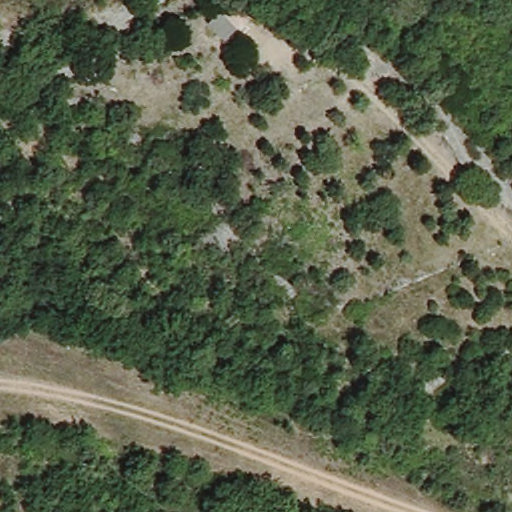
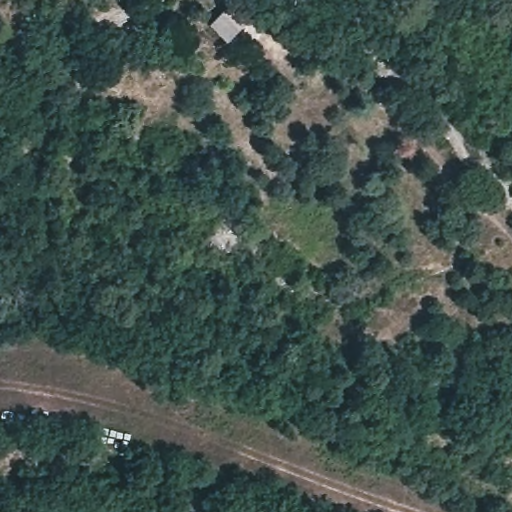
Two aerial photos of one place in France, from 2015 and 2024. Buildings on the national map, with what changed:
unchanged [(225,40),(209,24),(224,7),(249,21),(225,40)]

